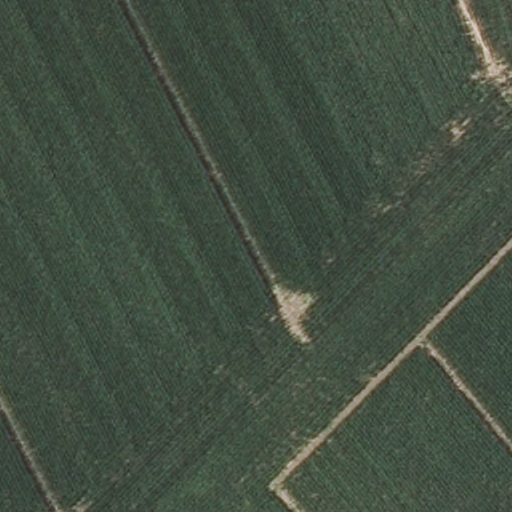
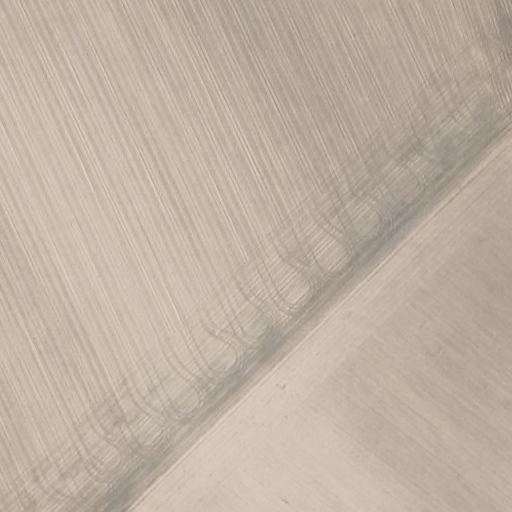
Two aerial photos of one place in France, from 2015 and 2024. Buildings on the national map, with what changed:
[]

